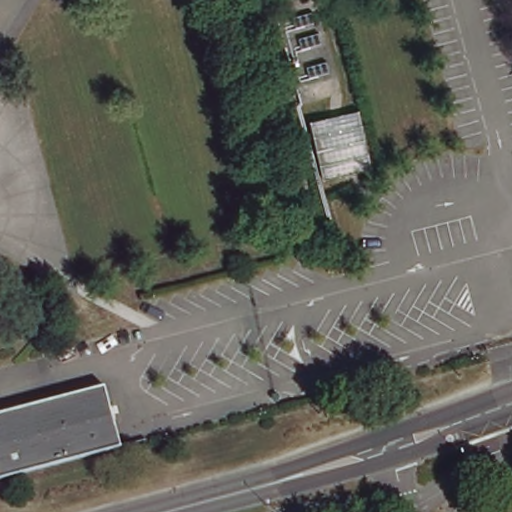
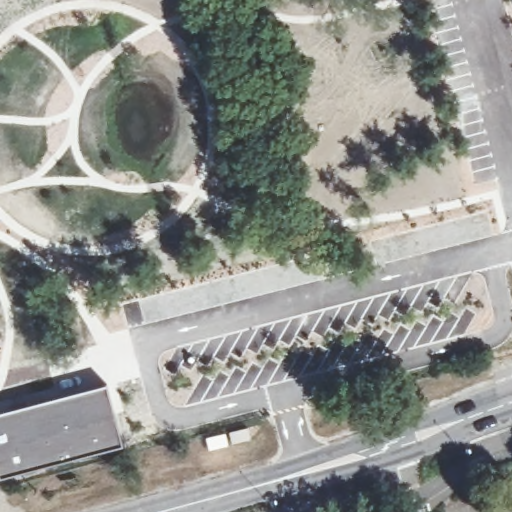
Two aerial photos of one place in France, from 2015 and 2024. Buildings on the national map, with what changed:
demolished [(375,169),(325,179),(310,121),(362,107),(375,169)]
unchanged [(0,473),(0,413),(44,401),(107,385),(122,444),(1,476),(0,473)]

